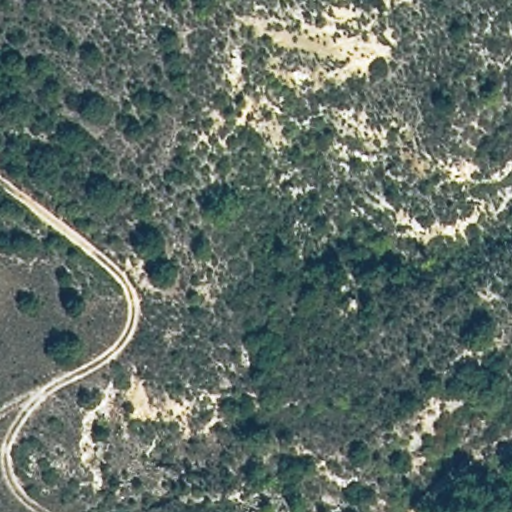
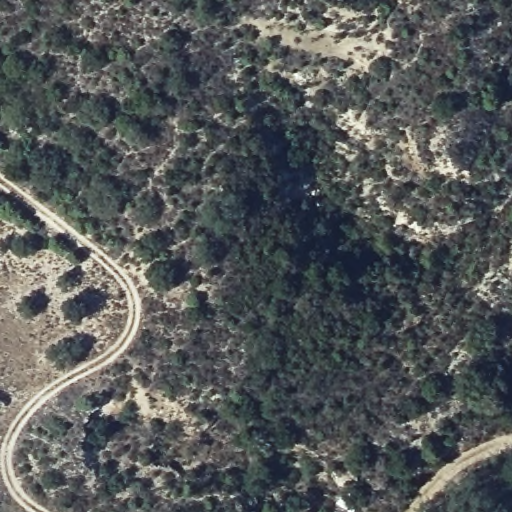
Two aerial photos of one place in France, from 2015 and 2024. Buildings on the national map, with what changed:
unchanged [(343,499),(339,508),(322,502),(325,494),(343,499)]

